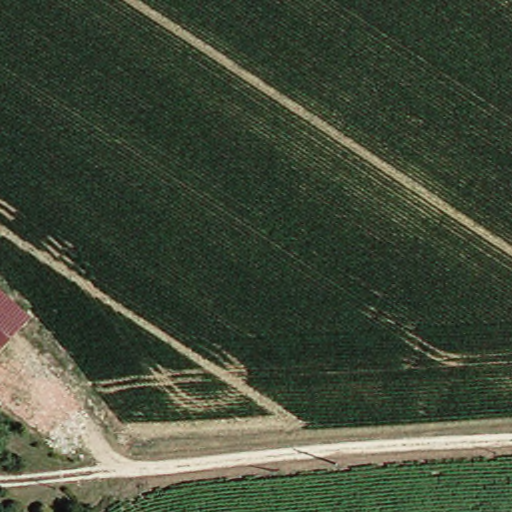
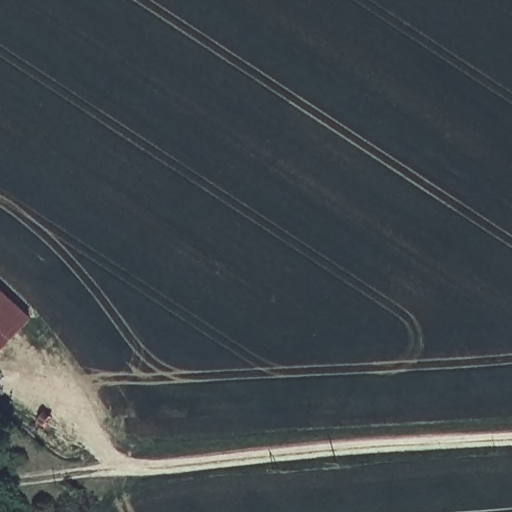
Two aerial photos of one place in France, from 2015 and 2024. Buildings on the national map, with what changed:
unchanged [(0,350),(0,298),(25,322),(0,350)]

